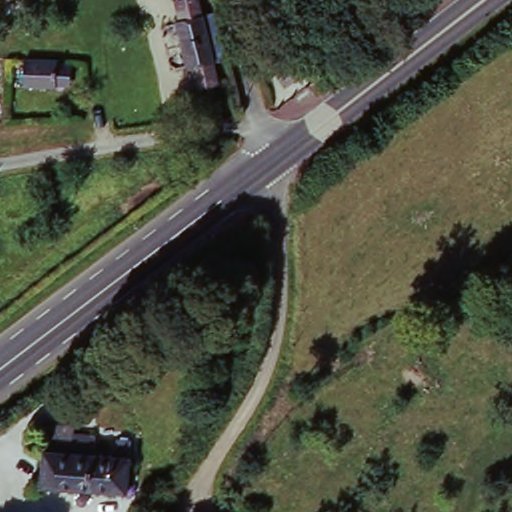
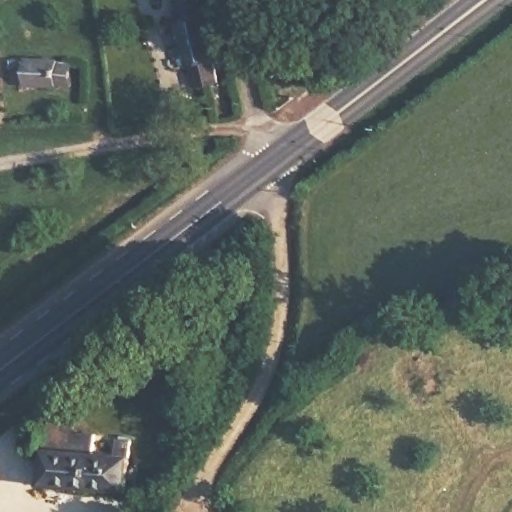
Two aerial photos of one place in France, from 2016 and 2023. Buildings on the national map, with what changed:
unchanged [(227,82),(219,85),(207,90),(201,71),(192,75),(182,36),(189,35),(183,5),(206,3),(226,76),(227,82)]
unchanged [(72,60),(75,87),(40,88),(39,60),(72,60)]
unchanged [(90,456),(112,456),(111,442),(133,445),(126,490),(41,486),(43,455),(46,455),(45,431),(71,432),(71,435),(92,437),(90,456)]

